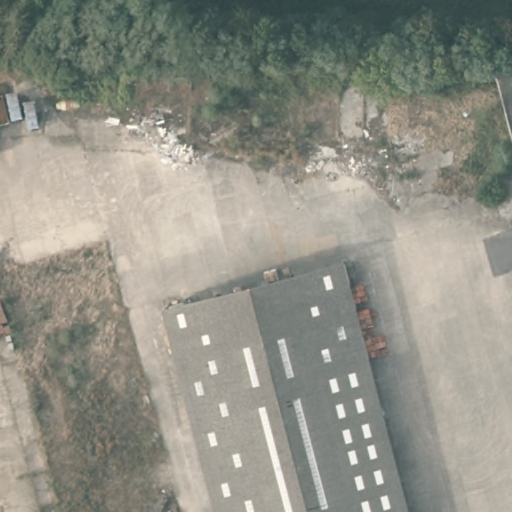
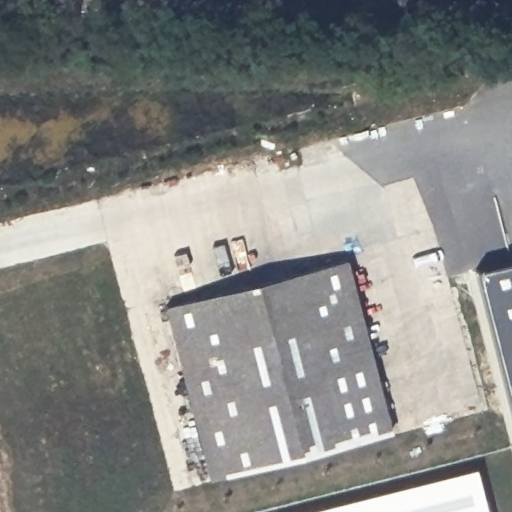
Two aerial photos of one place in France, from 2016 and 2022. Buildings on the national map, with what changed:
demolished [(512,69),(512,132),(496,71),(512,69)]
unchanged [(166,306),(346,259),(392,431),(210,478),(166,306)]
new [(512,262),(512,411),(477,271),(512,262)]
new [(477,469),(488,512),(305,512),(477,469)]

